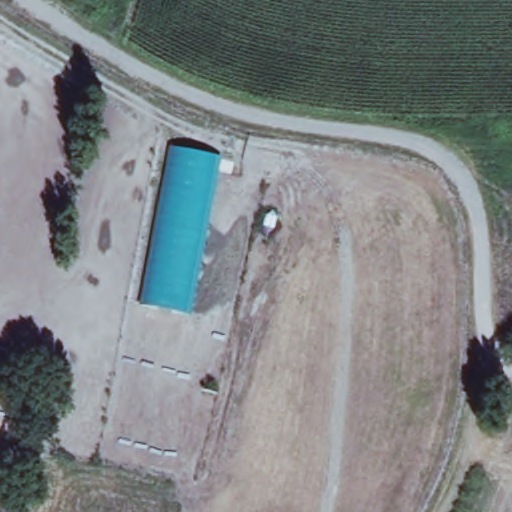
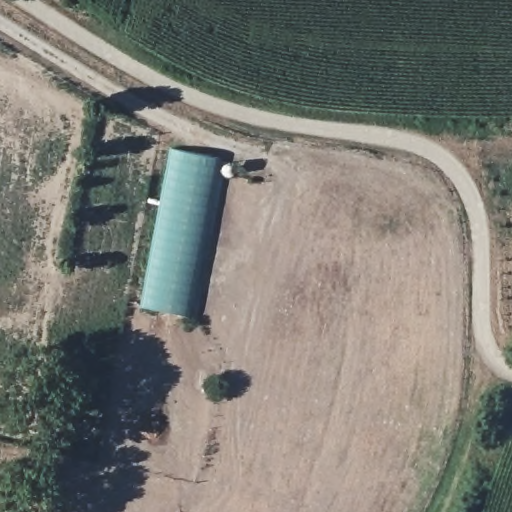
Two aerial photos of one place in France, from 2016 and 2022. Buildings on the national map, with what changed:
unchanged [(174,150),(215,158),(185,315),(144,307),(174,150)]

